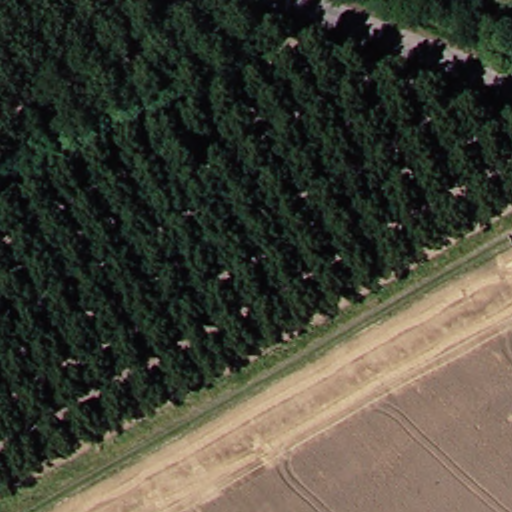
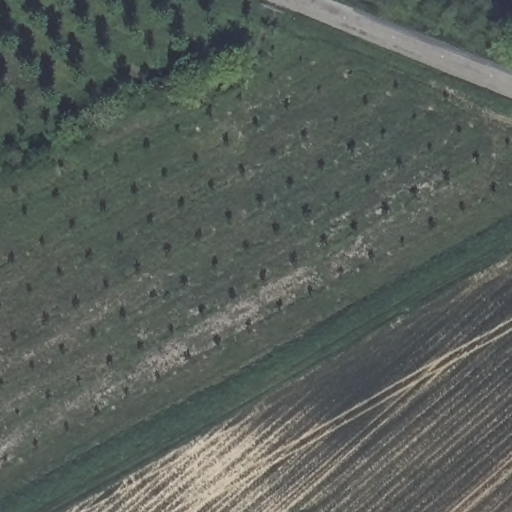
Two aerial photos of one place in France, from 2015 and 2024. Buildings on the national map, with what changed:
unchanged [(225,49),(209,39),(225,19),(239,29),(225,49)]

